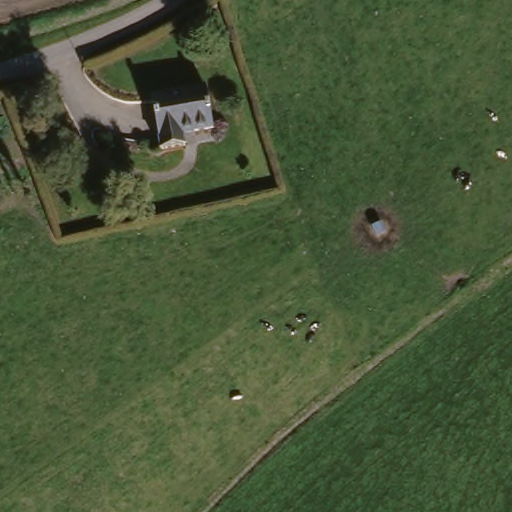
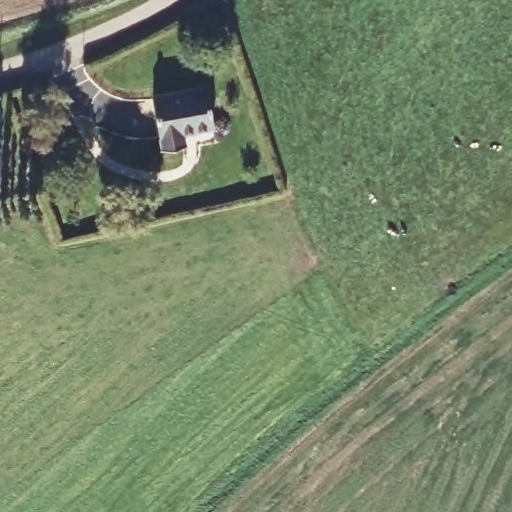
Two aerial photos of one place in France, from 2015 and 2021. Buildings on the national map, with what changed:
unchanged [(157,136),(151,97),(154,96),(203,90),(206,115),(178,120),(180,133),(157,136)]

